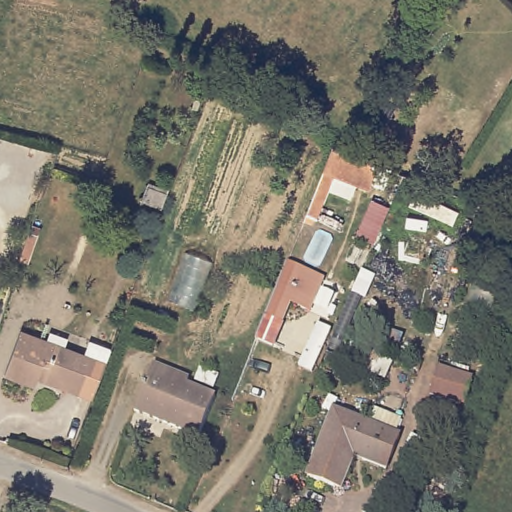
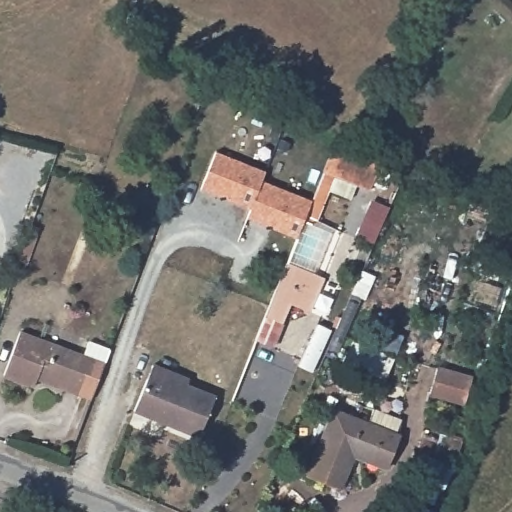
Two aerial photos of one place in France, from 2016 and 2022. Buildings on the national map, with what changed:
new [(317,220),(314,220),(311,222),(305,220),(297,239),(246,217),(250,209),(200,189),(216,150),(265,170),(262,180),(311,199),(315,190),(327,195),(317,220)]
unchanged [(315,190),(321,176),(331,150),(378,169),(367,195),(354,190),(348,204),(315,190)]
unchanged [(253,345),(262,322),(283,270),(318,283),(305,314),(289,307),(280,328),(270,352),(253,345)]
unchanged [(28,387),(0,376),(0,373),(14,333),(76,357),(82,343),(105,351),(86,400),(74,395),(31,380),(28,387)]
unchanged [(395,358),(385,383),(342,367),(351,342),(395,358)]
unchanged [(471,377),(464,404),(429,395),(436,367),(471,377)]
unchanged [(181,391),(209,402),(193,442),(129,415),(146,371),(183,386),(181,391)]
unchanged [(213,380),(207,395),(189,388),(194,373),(213,380)]
unchanged [(340,493),(307,480),(332,415),(367,428),(372,414),(401,425),(396,439),(398,440),(385,473),(362,465),(352,460),(340,493)]

